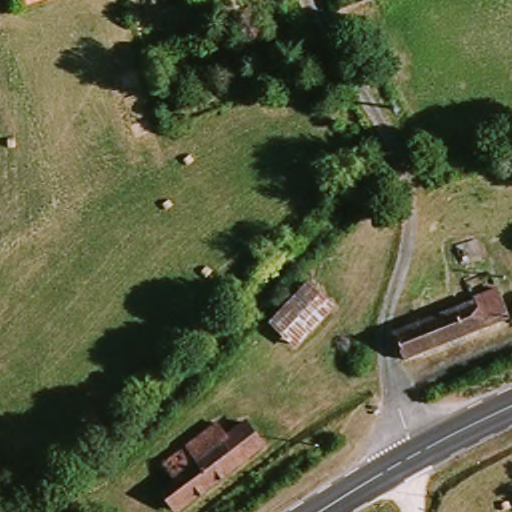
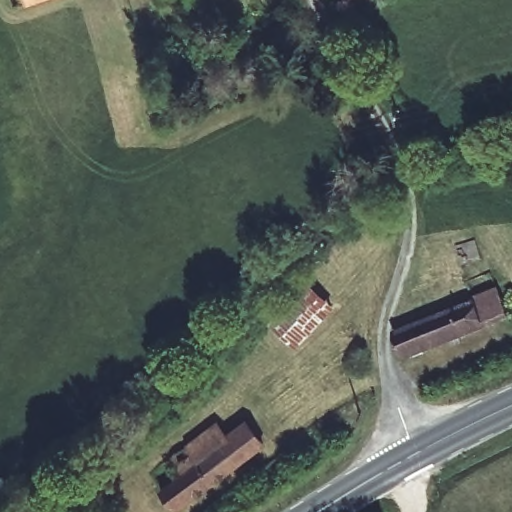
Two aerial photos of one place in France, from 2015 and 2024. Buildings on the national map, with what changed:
unchanged [(26,9),(23,0),(48,0),(26,9)]
unchanged [(270,320),(309,282),(331,308),(293,343),(270,320)]
unchanged [(405,362),(394,335),(476,302),(474,299),(493,289),(509,320),(405,362)]
unchanged [(234,472),(213,441),(242,420),(262,450),(234,472)]
unchanged [(185,512),(182,512),(164,488),(196,465),(191,458),(213,441),(234,472),(185,512)]

